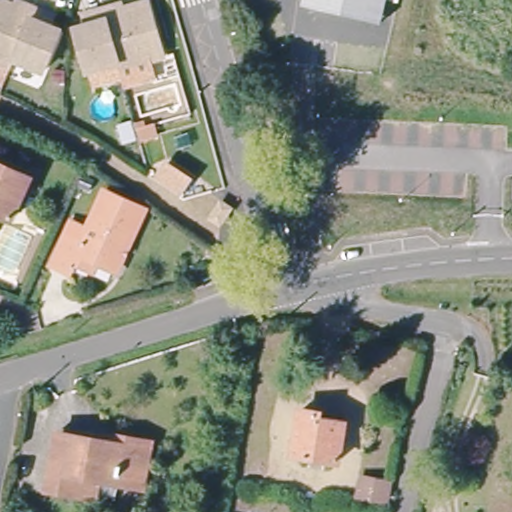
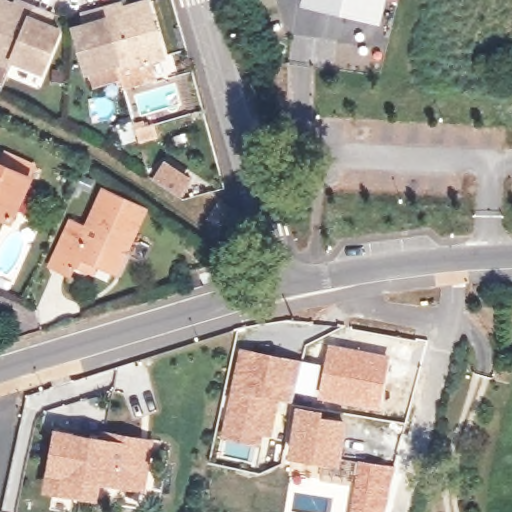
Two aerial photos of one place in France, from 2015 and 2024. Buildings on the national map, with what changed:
unchanged [(22,2),(23,0),(31,0),(39,3),(52,8),(48,18),(64,25),(47,66),(18,55),(16,61),(0,55),(0,0),(18,0),(22,2)]
unchanged [(380,21),(302,1),(302,0),(386,0),(380,21)]
unchanged [(102,9),(117,5),(118,10),(147,2),(163,57),(119,69),(117,63),(87,72),(74,29),(91,24),(88,13),(102,9)]
unchanged [(168,164),(188,178),(177,195),(156,181),(168,164)]
unchanged [(32,181),(14,221),(0,215),(0,166),(32,181)]
unchanged [(59,257),(74,224),(89,231),(107,192),(148,211),(119,273),(99,263),(95,273),(76,264),(59,257)]
unchanged [(216,251),(213,253),(202,245),(205,240),(212,236),(222,245),(216,251)]
new [(301,359),(322,364),(328,342),(390,355),(379,410),(316,396),(294,391),(291,404),(280,402),(271,437),(263,436),(260,445),(219,435),(239,347),(301,359)]
unchanged [(344,421),(337,460),(293,452),(300,408),(318,411),(317,416),(344,421)]
unchanged [(143,492),(84,481),(80,500),(47,493),(57,437),(101,445),(102,437),(117,440),(149,446),(143,492)]
unchanged [(356,494),(360,474),(390,480),(386,500),(356,494)]

